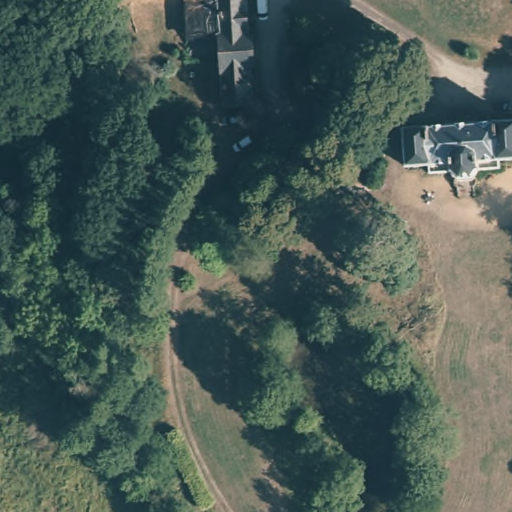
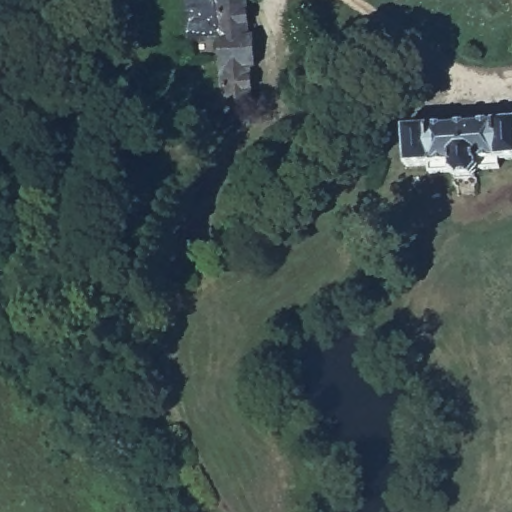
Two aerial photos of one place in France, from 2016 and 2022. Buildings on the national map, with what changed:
unchanged [(219,111),(217,39),(187,38),(185,0),(256,0),(260,110),(219,111)]
unchanged [(494,158),(494,167),(473,167),(473,185),(469,185),(469,194),(456,195),(450,187),(449,179),(454,178),(455,169),(428,169),(429,162),(404,161),(404,125),(448,123),(448,113),(464,112),(474,112),(474,121),(512,120),(512,158),(494,158)]

